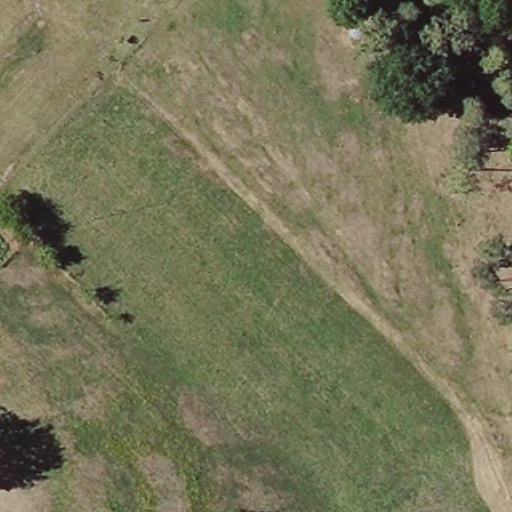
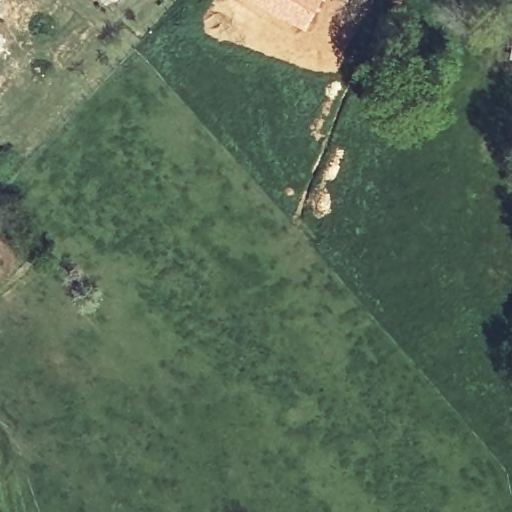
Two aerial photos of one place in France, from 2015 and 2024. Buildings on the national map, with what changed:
new [(252,0),(320,0),(305,27),(252,0)]

